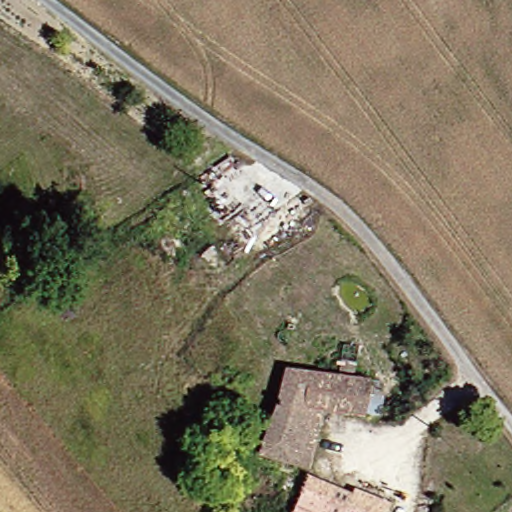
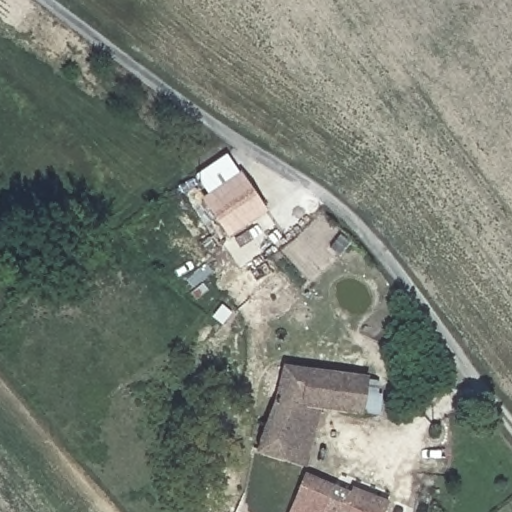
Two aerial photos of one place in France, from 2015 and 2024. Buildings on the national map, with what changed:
new [(226,153),(240,173),(207,195),(195,175),(226,153)]
new [(242,171),(270,211),(230,237),(203,198),(242,171)]
unchanged [(316,467),(270,455),(295,369),(376,384),(369,418),(332,411),(325,441),(316,467)]
unchanged [(398,512),(308,512),(320,482),(400,508),(398,512)]

